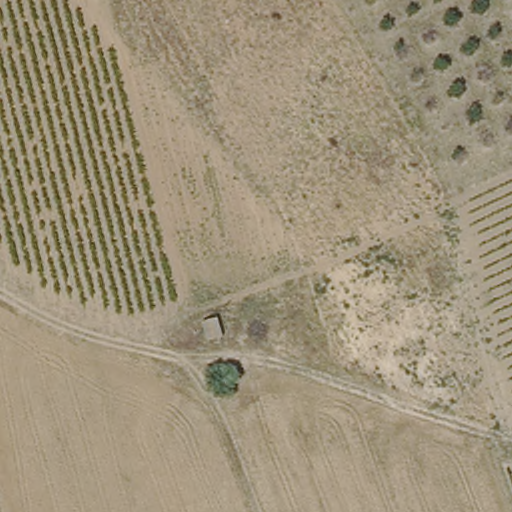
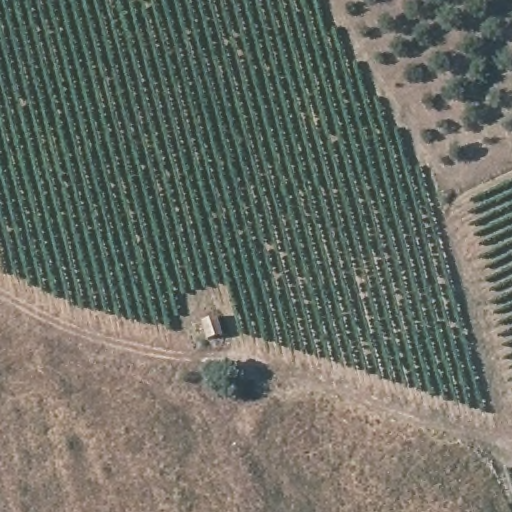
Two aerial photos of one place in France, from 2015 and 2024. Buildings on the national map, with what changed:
unchanged [(222,306),(232,338),(201,342),(193,314),(222,306)]

